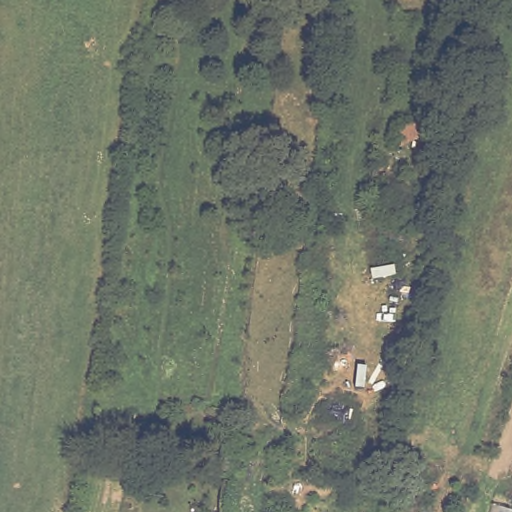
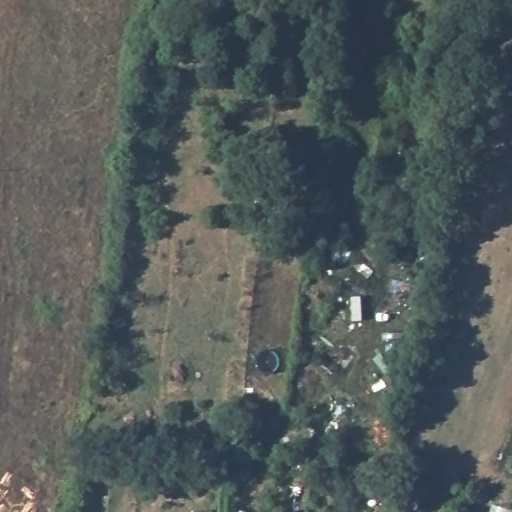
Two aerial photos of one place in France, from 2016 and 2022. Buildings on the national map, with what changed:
unchanged [(242,477),(225,475),(208,472),(210,454),(230,456),(245,458),(242,477)]

